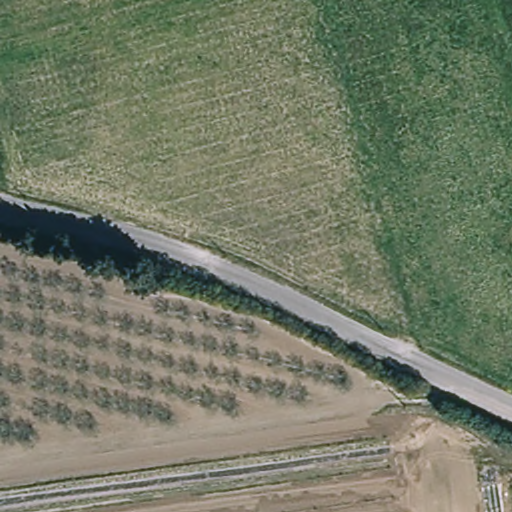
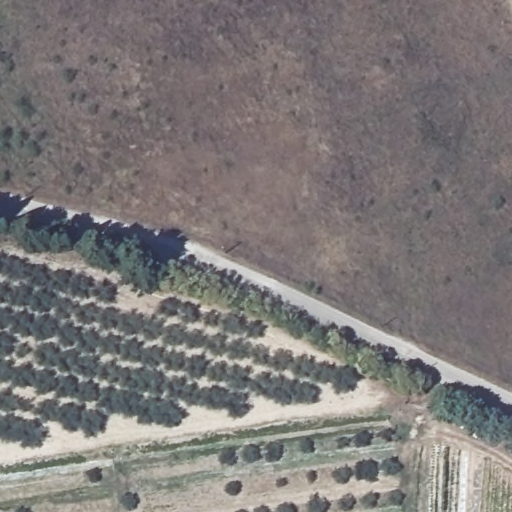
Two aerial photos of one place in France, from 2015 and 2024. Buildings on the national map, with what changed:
unchanged [(168,288),(165,299),(156,297),(159,285),(168,288)]

